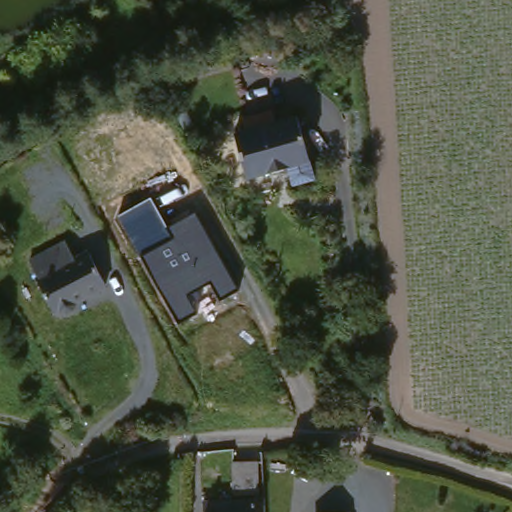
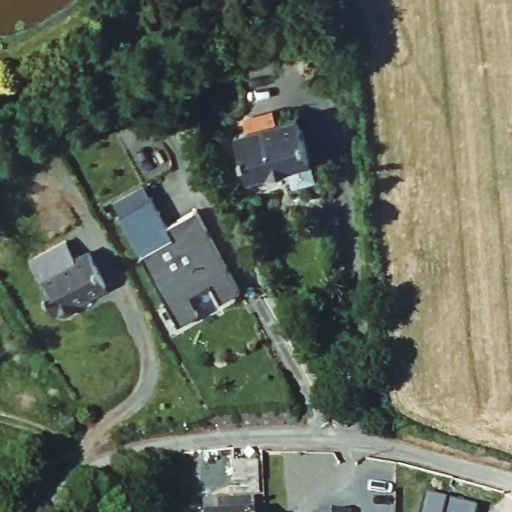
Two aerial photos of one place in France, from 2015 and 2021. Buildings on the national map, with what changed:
unchanged [(312,155),(252,175),(238,130),(298,110),(312,155)]
unchanged [(118,215),(151,196),(168,225),(196,211),(240,290),(220,301),(209,282),(188,292),(198,312),(177,324),(118,215)]
unchanged [(71,242),(79,258),(96,250),(111,282),(78,301),(82,308),(68,316),(64,310),(59,312),(42,283),(48,277),(39,258),(71,242)]
unchanged [(239,461),(265,462),(265,495),(239,495),(239,461)]
new [(425,494),(476,507),(475,512),(420,512),(425,494)]
unchanged [(259,501),(260,512),(210,512),(209,505),(259,501)]

